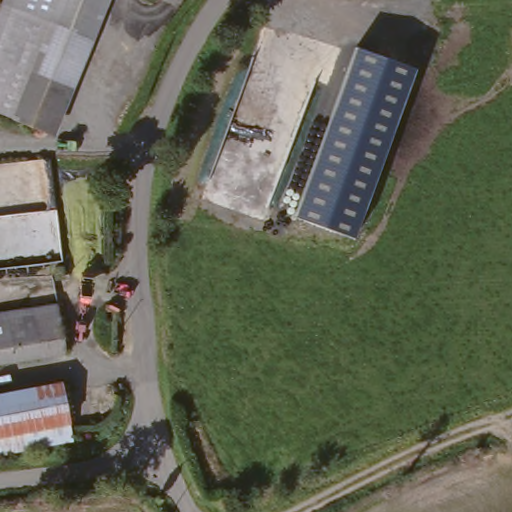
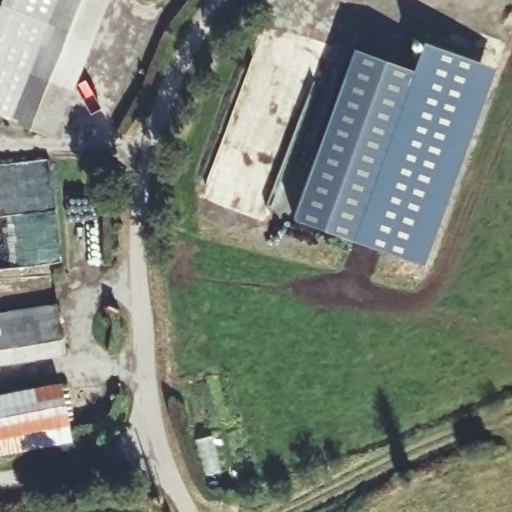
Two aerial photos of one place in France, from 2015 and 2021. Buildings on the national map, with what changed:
unchanged [(107,0),(90,43),(0,9),(0,2),(1,0),(107,0)]
unchanged [(0,118),(0,9),(90,43),(53,138),(0,118)]
new [(423,42),(496,68),(425,267),(353,241),(416,69),(423,42)]
unchanged [(416,69),(353,241),(292,219),(354,47),(416,69)]
unchanged [(60,360),(0,369),(0,318),(52,310),(57,339),(60,360)]
unchanged [(55,389),(67,446),(0,460),(0,400),(55,389)]

